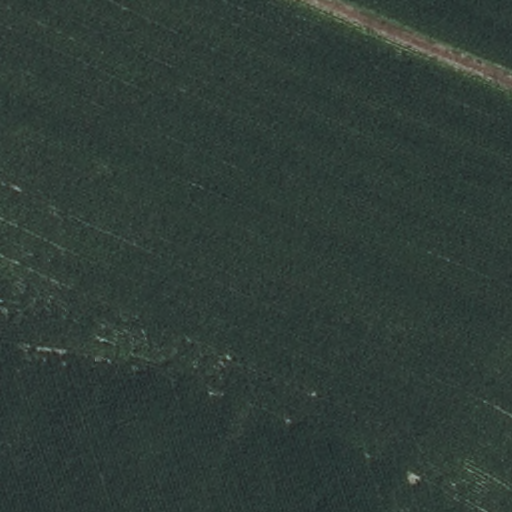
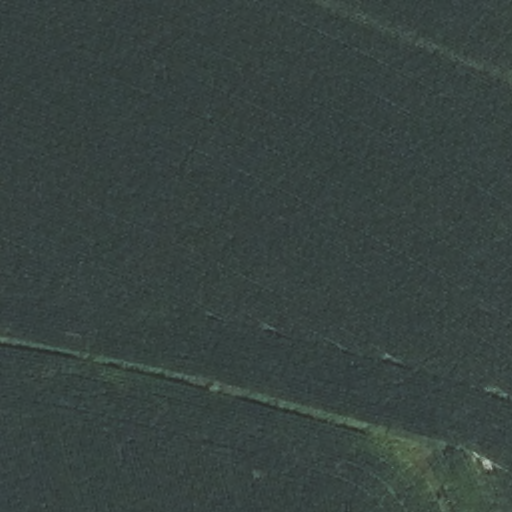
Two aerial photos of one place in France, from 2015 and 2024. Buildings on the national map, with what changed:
[]

